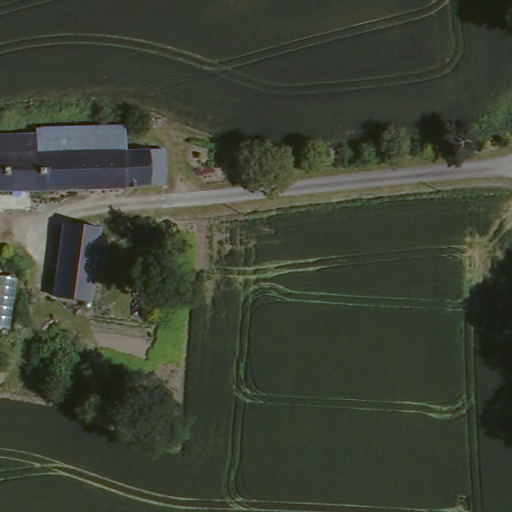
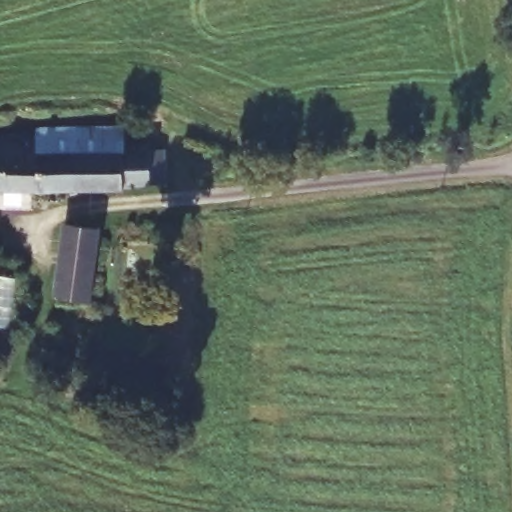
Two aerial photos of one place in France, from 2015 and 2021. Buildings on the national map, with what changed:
unchanged [(56,119),(130,124),(131,146),(171,143),(175,175),(119,183),(65,184),(70,147),(46,147),(47,131),(47,128),(56,119)]
unchanged [(0,146),(46,147),(70,147),(65,184),(0,183),(0,146)]
unchanged [(122,226),(111,298),(77,294),(89,222),(122,226)]

